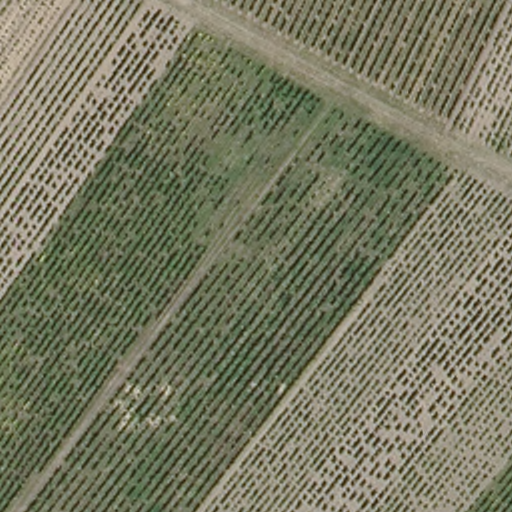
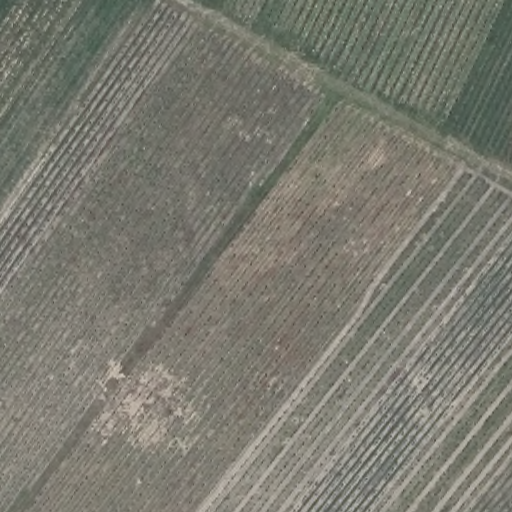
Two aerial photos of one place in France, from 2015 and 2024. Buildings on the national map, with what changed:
[]

